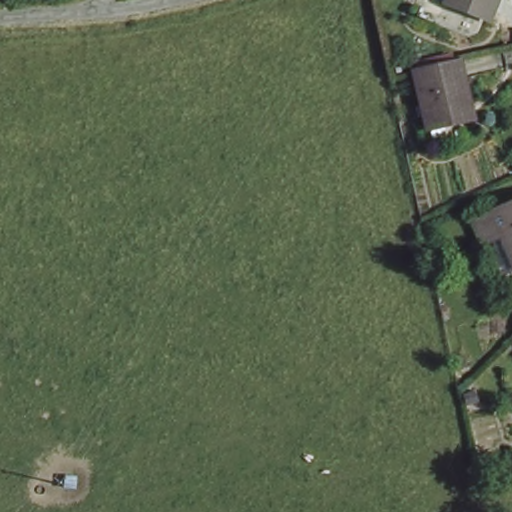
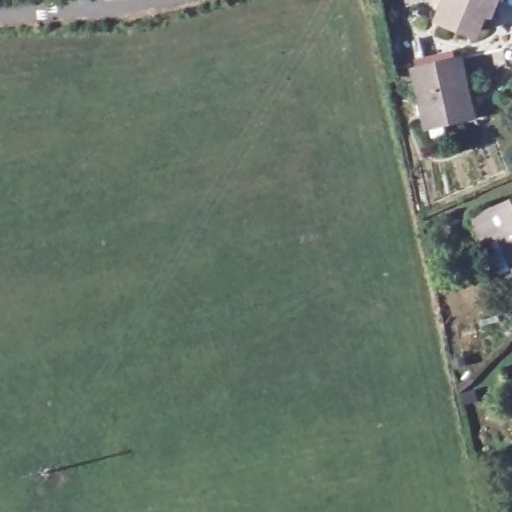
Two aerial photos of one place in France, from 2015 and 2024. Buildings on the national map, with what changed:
unchanged [(494,0),(486,20),(448,5),(450,0),(494,0)]
unchanged [(470,92),(464,93),(470,123),(431,133),(417,75),(464,64),(470,92)]
unchanged [(499,278),(490,260),(499,255),(494,245),(506,239),(503,231),(484,240),(476,220),(494,211),(512,203),(512,272),(499,278)]

